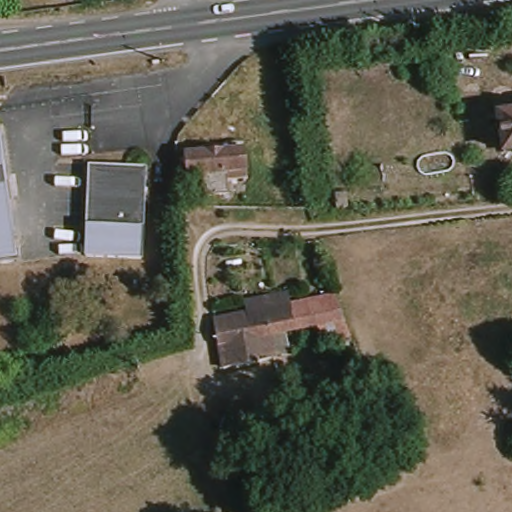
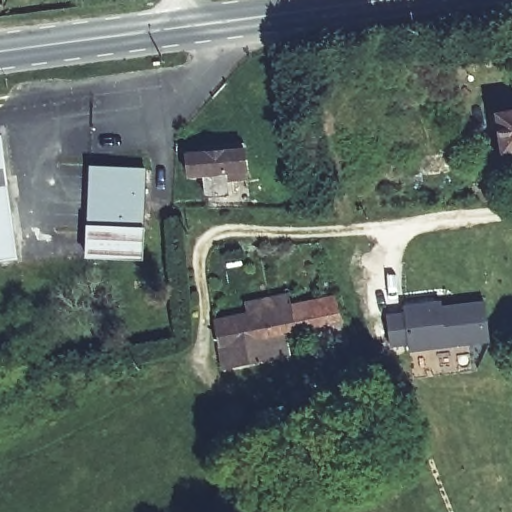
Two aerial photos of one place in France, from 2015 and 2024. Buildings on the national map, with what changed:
unchanged [(512,157),(505,157),(501,120),(512,119),(512,157)]
unchanged [(2,157),(3,169),(5,189),(0,190),(0,146),(2,157)]
unchanged [(246,152),(249,190),(235,190),(236,203),(209,205),(207,187),(195,187),(195,167),(202,167),(201,157),(246,152)]
unchanged [(145,172),(141,263),(85,261),(89,171),(145,172)]
unchanged [(5,189),(16,264),(0,267),(0,190),(5,189)]
new [(402,303),(426,300),(439,298),(439,304),(482,298),(487,337),(408,347),(407,340),(389,343),(385,313),(402,311),(402,303)]
unchanged [(341,326),(270,341),(272,360),(222,370),(215,326),(335,302),(341,326)]

